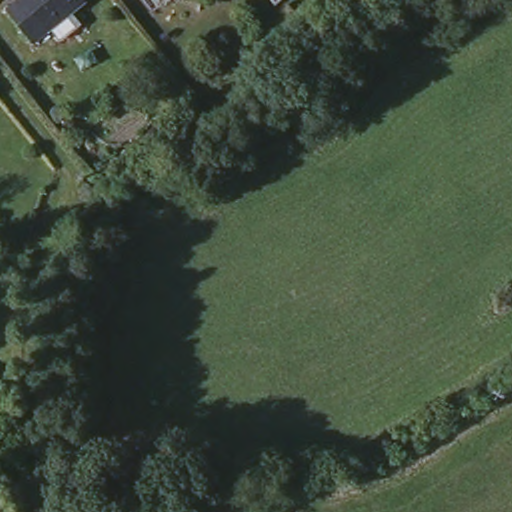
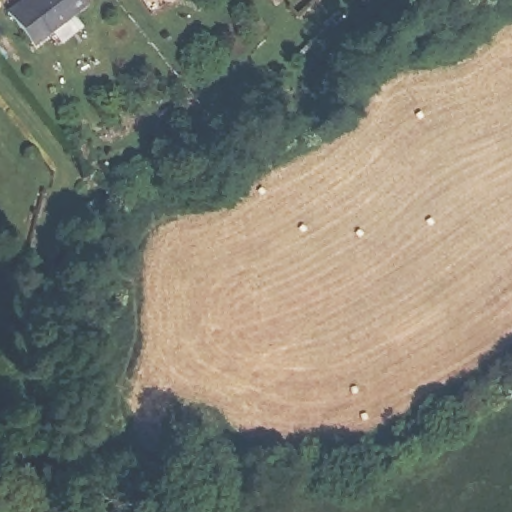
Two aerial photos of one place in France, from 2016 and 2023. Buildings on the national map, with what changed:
unchanged [(29,0),(90,0),(92,1),(32,47),(7,15),(29,0)]

